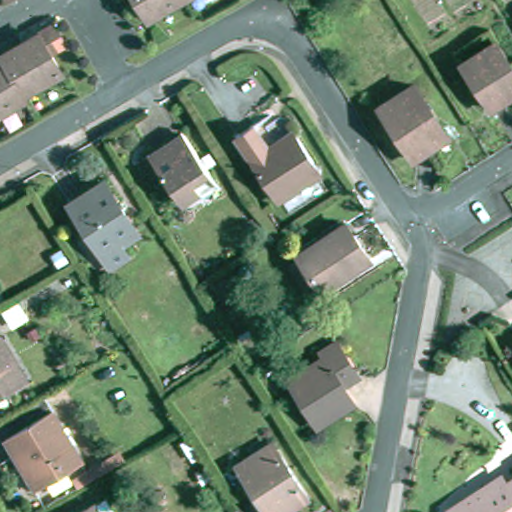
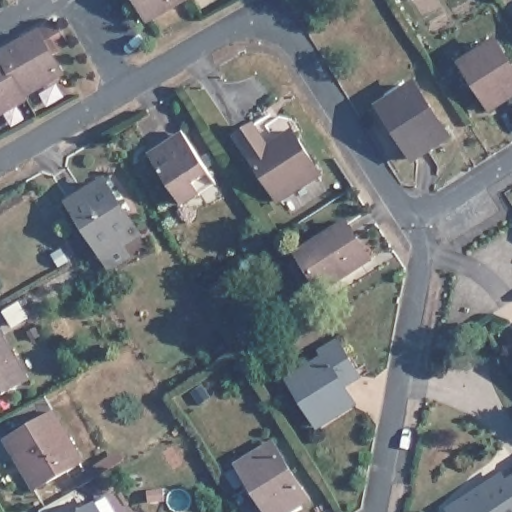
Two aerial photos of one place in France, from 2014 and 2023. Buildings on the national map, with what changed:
unchanged [(136,0),(183,0),(147,20),(136,0)]
unchanged [(61,43),(46,50),(58,74),(19,95),(21,99),(0,111),(0,60),(0,55),(51,26),(61,43)]
unchanged [(499,43),(512,64),(512,95),(490,109),(463,64),(499,43)]
unchanged [(416,84),(449,137),(414,159),(381,105),(416,84)]
unchanged [(253,124),(268,147),(293,131),(320,174),(278,202),(236,135),(253,124)]
unchanged [(200,193),(181,205),(149,155),(184,134),(211,174),(216,183),(200,193)]
unchanged [(105,182),(138,233),(103,256),(70,204),(105,182)]
unchanged [(299,254),(347,224),(370,261),(352,273),(349,269),(321,286),(319,285),(308,292),(291,264),(301,259),(299,254)]
unchanged [(26,382),(0,396),(0,339),(1,339),(26,382)]
unchanged [(319,379),(335,369),(324,352),(341,341),(360,371),(364,378),(349,388),(358,403),(323,425),(294,381),(313,369),(319,379)]
unchanged [(77,458),(29,485),(0,436),(0,435),(48,408),(77,458)]
unchanged [(274,444),(308,499),(287,512),(266,512),(238,466),(274,444)]
unchanged [(67,475),(90,462),(90,463),(94,461),(111,452),(114,458),(98,468),(94,469),(96,472),(73,485),(67,475)]
unchanged [(463,504),(459,499),(475,489),(486,483),(488,487),(499,479),(502,484),(512,477),(512,512),(450,512),(463,504)]
unchanged [(94,505),(98,512),(82,512),(94,505)]

